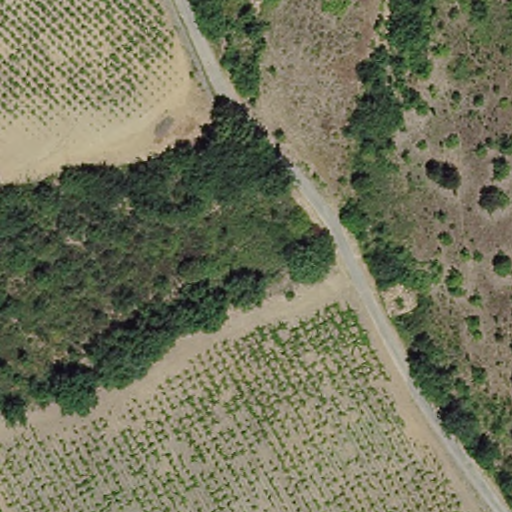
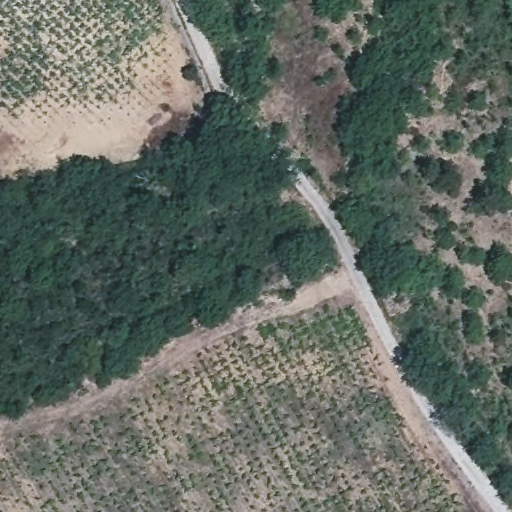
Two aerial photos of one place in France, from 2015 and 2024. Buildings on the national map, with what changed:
unchanged [(374,288),(398,283),(408,310),(385,314),(374,288)]

